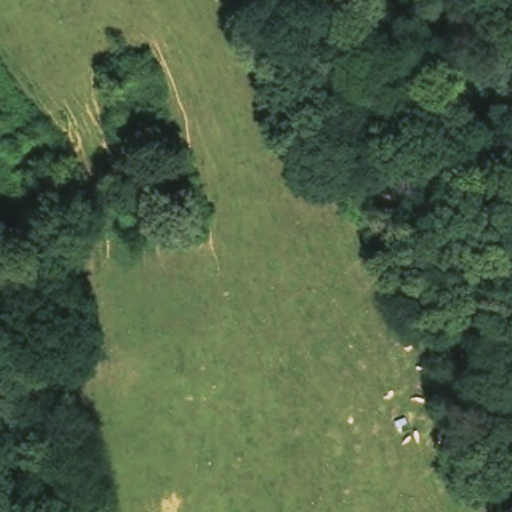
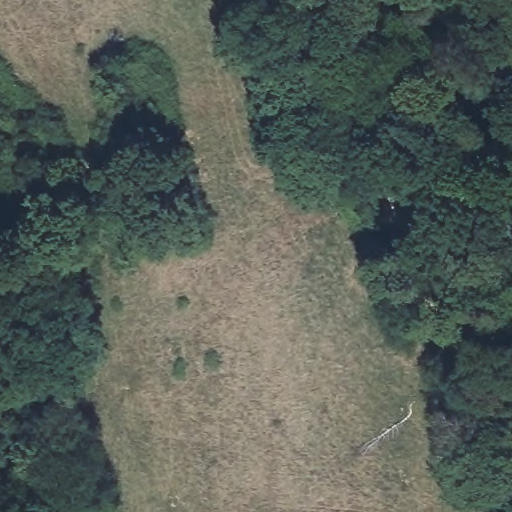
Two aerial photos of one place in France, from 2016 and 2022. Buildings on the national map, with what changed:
[]

